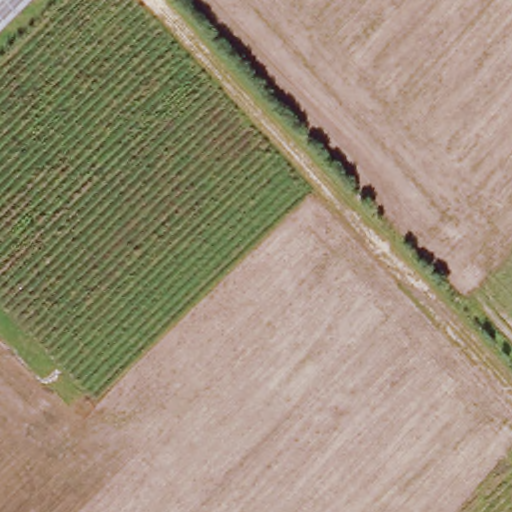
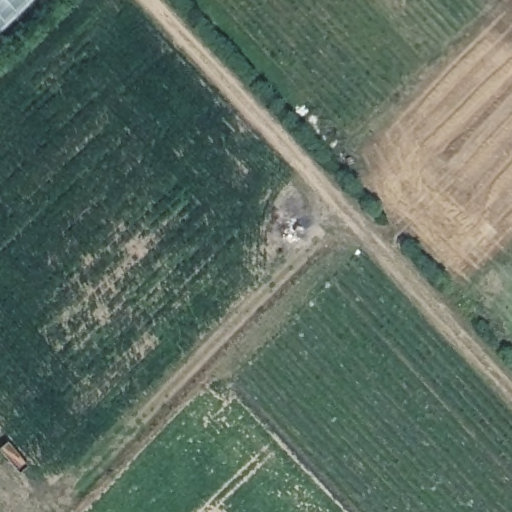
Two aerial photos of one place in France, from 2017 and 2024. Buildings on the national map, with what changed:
unchanged [(0,29),(0,0),(30,0),(0,29)]

